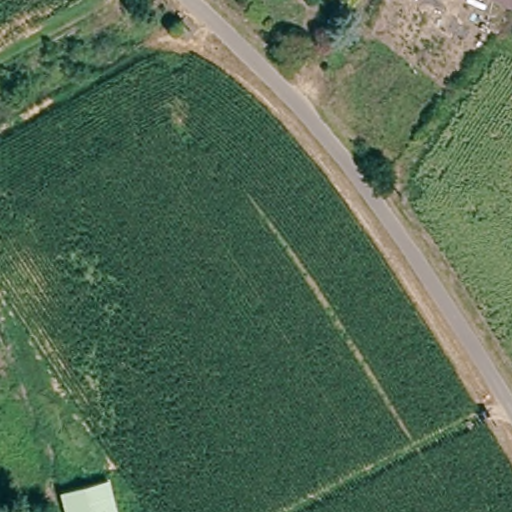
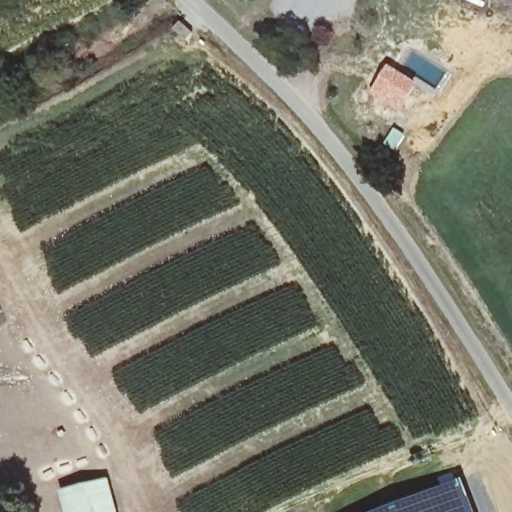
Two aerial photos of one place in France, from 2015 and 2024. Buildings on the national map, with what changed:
unchanged [(501,0),(512,0),(512,5),(501,0)]
unchanged [(193,38),(183,44),(174,29),(184,22),(193,38)]
demolished [(218,54),(208,61),(199,45),(208,39),(218,54)]
new [(401,113),(371,94),(389,66),(419,85),(401,113)]
new [(462,478),(475,512),(375,512),(462,478)]
unchanged [(54,501),(106,485),(115,512),(57,512),(54,501)]

